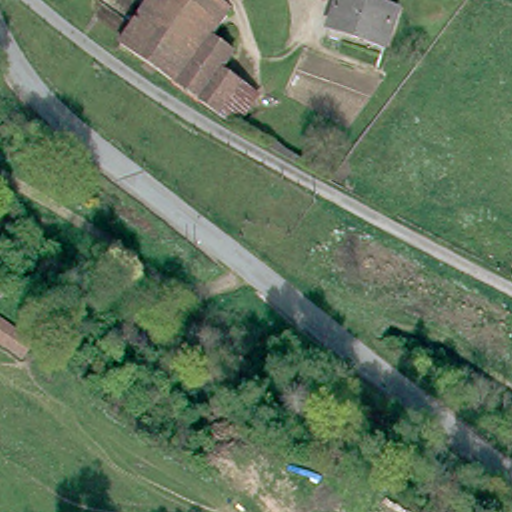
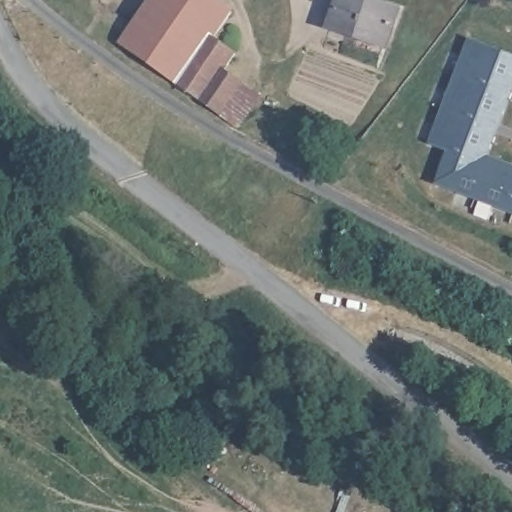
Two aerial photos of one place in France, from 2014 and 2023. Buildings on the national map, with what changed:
unchanged [(226,115),(126,44),(158,0),(219,0),(237,13),(219,39),(241,55),(228,73),(246,85),(254,92),(264,99),(243,127),(234,120),(226,115)]
unchanged [(328,30),(338,0),(366,0),(399,11),(387,48),(328,30)]
new [(489,155),(512,164),(512,213),(434,184),(446,150),(428,144),(469,39),(512,55),(512,93),(489,155)]
unchanged [(33,370),(0,346),(0,306),(49,345),(33,370)]

